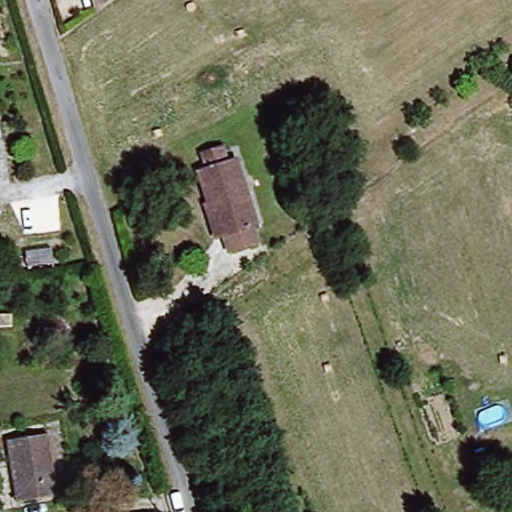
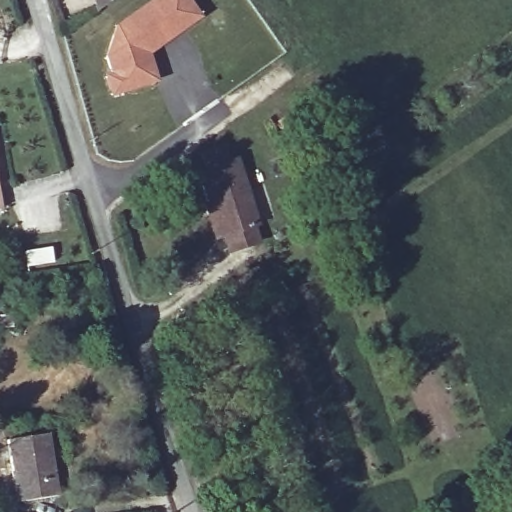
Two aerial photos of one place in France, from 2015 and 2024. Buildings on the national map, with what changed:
unchanged [(93,15),(89,0),(113,0),(93,16),(93,15)]
new [(113,25),(147,0),(189,0),(202,17),(149,55),(159,81),(110,96),(106,72),(103,53),(113,25)]
unchanged [(201,202),(207,201),(199,167),(211,165),(207,149),(229,142),(234,158),(241,156),(258,222),(250,224),(254,240),(226,247),(222,232),(209,236),(201,202)]
unchanged [(53,495),(18,500),(9,436),(44,430),(53,495)]

